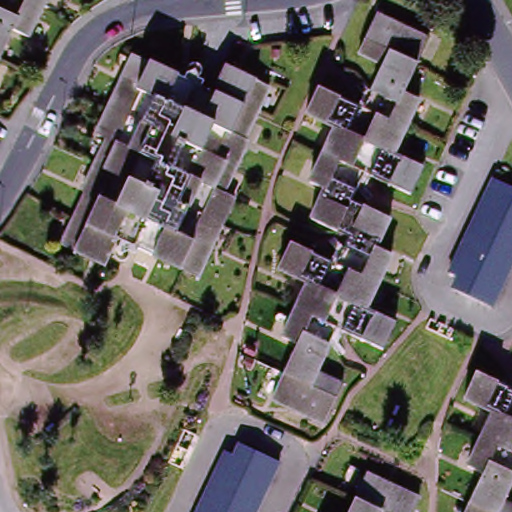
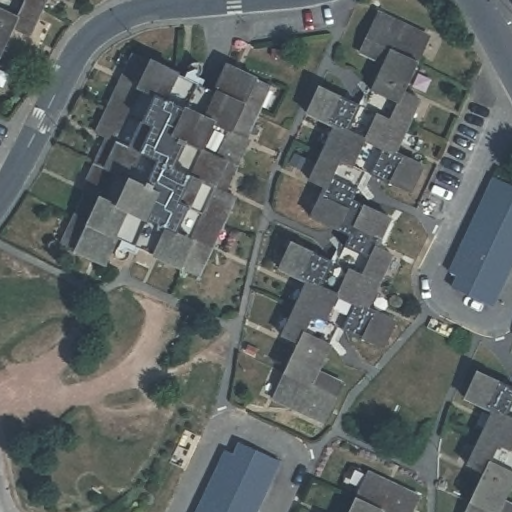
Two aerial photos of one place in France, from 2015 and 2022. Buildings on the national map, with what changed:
unchanged [(5,31),(0,40),(0,0),(41,0),(20,40),(5,31)]
unchanged [(78,0),(80,0),(80,1),(78,0)]
unchanged [(379,321),(368,345),(330,328),(307,373),(330,386),(311,419),(268,398),(292,349),(276,339),(303,286),(278,271),(290,246),(332,268),(347,239),(320,226),(338,193),(320,184),(347,130),(319,117),(331,93),(378,115),(398,75),(377,64),(397,24),(442,45),(417,100),(427,104),(402,155),(430,171),(416,197),(372,174),(358,201),(385,215),(368,246),(385,252),(357,310),(379,321)]
unchanged [(232,72),(275,91),(223,194),(237,201),(203,275),(122,236),(109,263),(61,236),(113,140),(97,130),(137,56),(217,97),(232,72)]
unchanged [(512,191),(512,201),(510,203),(512,204),(512,258),(485,311),(462,300),(468,288),(445,276),(492,181),(512,191)]
unchanged [(475,373),(512,393),(512,476),(498,502),(512,509),(512,512),(459,512),(477,476),(463,469),(490,418),(460,400),(475,373)]
unchanged [(222,460),(247,473),(257,457),(278,469),(255,512),(195,512),(222,460)]
unchanged [(376,476),(432,504),(427,512),(358,512),(376,476)]

